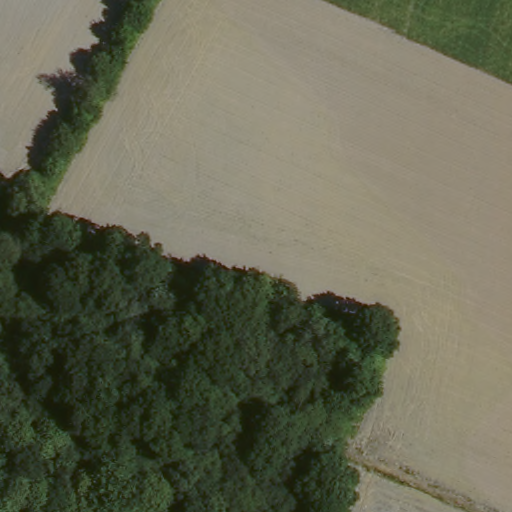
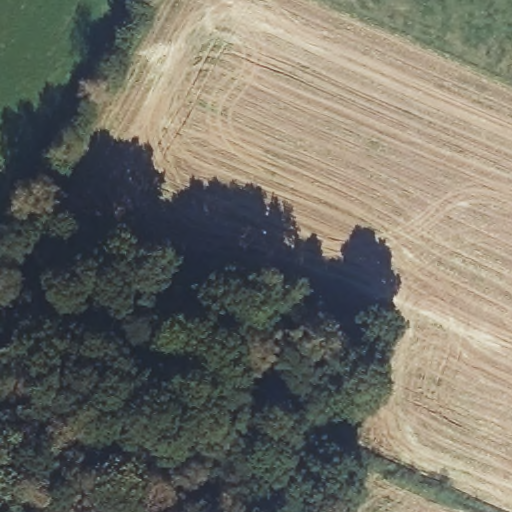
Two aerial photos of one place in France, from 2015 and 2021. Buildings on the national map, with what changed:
[]

